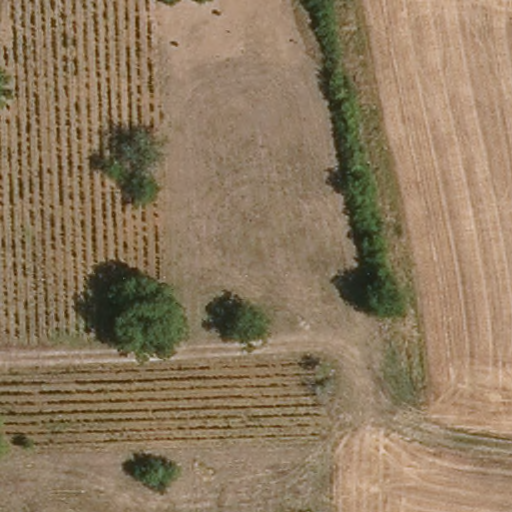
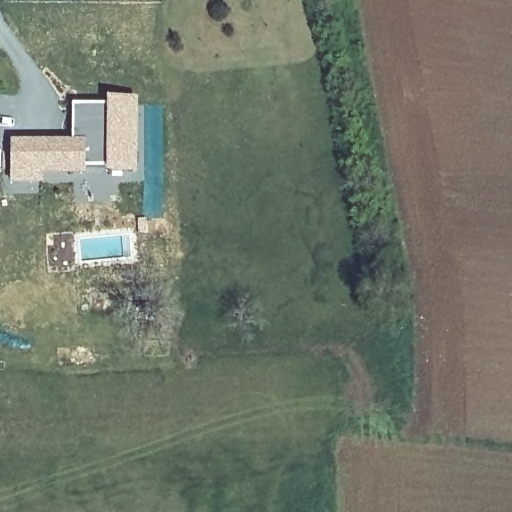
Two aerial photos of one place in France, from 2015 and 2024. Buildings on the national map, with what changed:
new [(137,174),(106,174),(106,168),(85,168),(83,175),(42,177),(41,183),(11,184),(11,141),(71,141),(72,104),(106,105),(106,99),(137,99),(137,174)]

